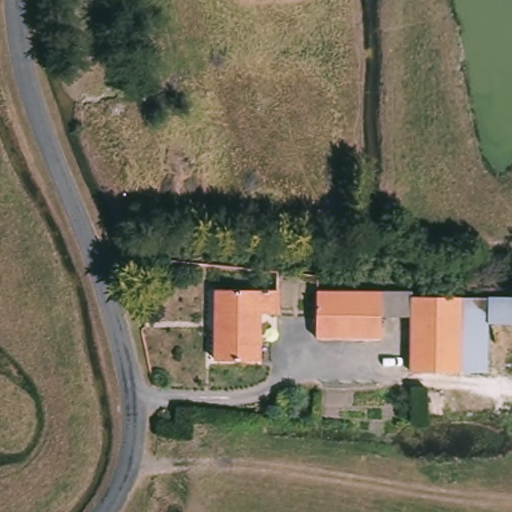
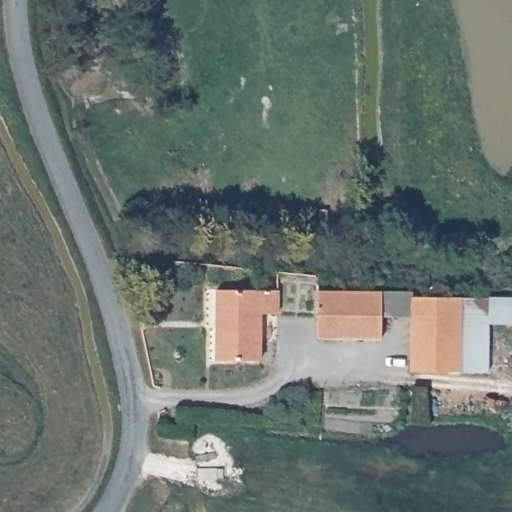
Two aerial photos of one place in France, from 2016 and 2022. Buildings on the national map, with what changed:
unchanged [(283,294),(281,318),(266,317),(262,360),(220,357),(224,288),(283,294)]
unchanged [(409,316),(381,316),(380,340),(316,339),(316,289),(412,290),(412,295),(512,296),(512,323),(490,323),(490,373),(408,372),(409,316)]

